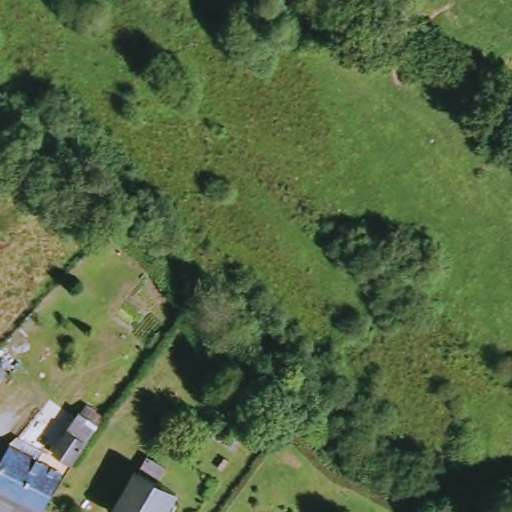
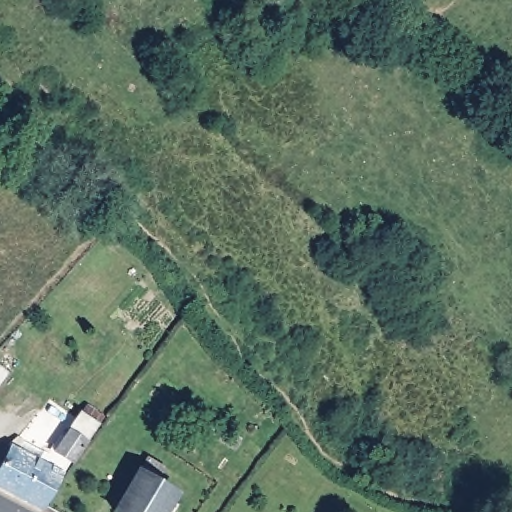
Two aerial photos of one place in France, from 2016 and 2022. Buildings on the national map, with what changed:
unchanged [(0,381),(0,367),(7,373),(0,381)]
unchanged [(41,510),(0,488),(0,467),(12,447),(6,445),(16,436),(51,455),(66,430),(84,440),(44,505),(41,510)]
unchanged [(114,511),(146,457),(166,469),(158,482),(176,493),(164,512),(115,512),(114,511)]

